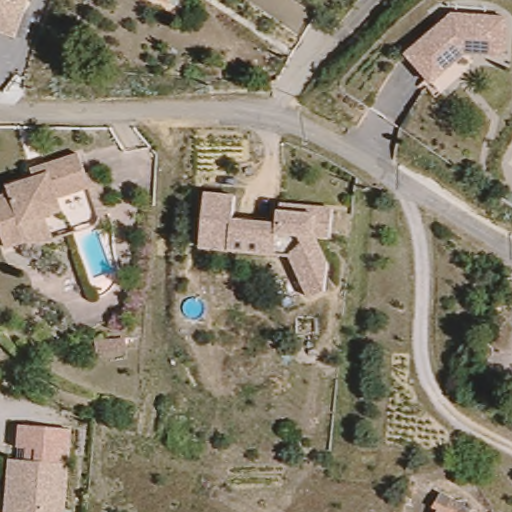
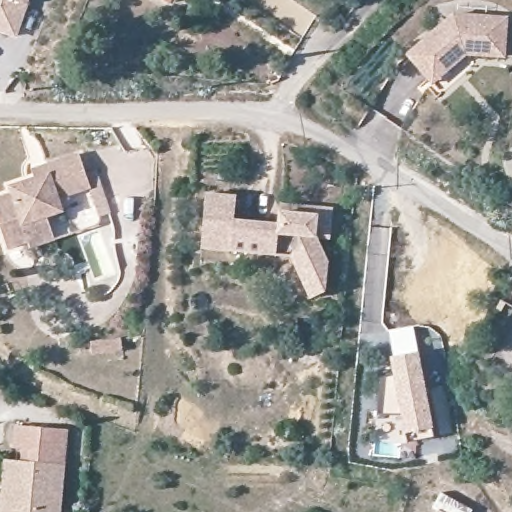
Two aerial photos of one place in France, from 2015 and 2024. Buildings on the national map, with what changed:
unchanged [(19,37),(0,31),(0,0),(30,0),(19,37)]
unchanged [(431,80),(407,58),(447,13),(500,10),(502,48),(465,50),(436,84),(431,80)]
unchanged [(33,245),(31,238),(10,245),(0,215),(0,195),(15,190),(12,183),(37,175),(34,167),(48,162),(81,152),(92,185),(102,182),(112,211),(101,215),(91,185),(60,196),(64,209),(49,213),(57,237),(33,245)]
unchanged [(325,247),(310,245),(323,273),(321,301),(307,307),(287,264),(197,256),(201,203),(231,205),(229,229),(274,233),(275,221),(275,213),(311,217),(327,218),(325,247)]
unchanged [(131,351),(130,363),(100,360),(101,348),(131,351)]
new [(419,350),(433,428),(405,432),(399,411),(393,376),(391,355),(419,350)]
unchanged [(24,462),(25,449),(16,448),(18,426),(70,432),(66,467),(61,512),(2,512),(4,494),(6,476),(8,460),(24,462)]
unchanged [(468,512),(437,512),(444,499),(468,512)]

